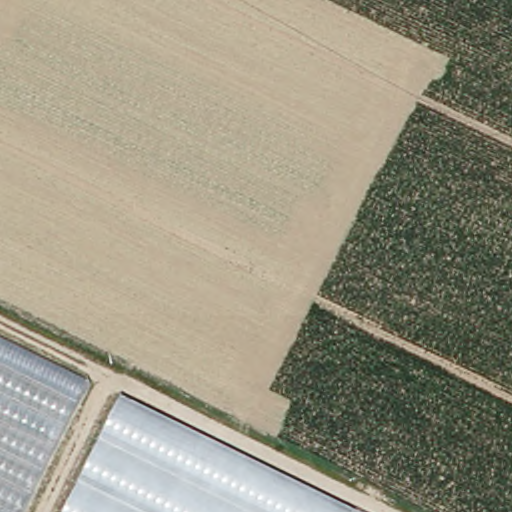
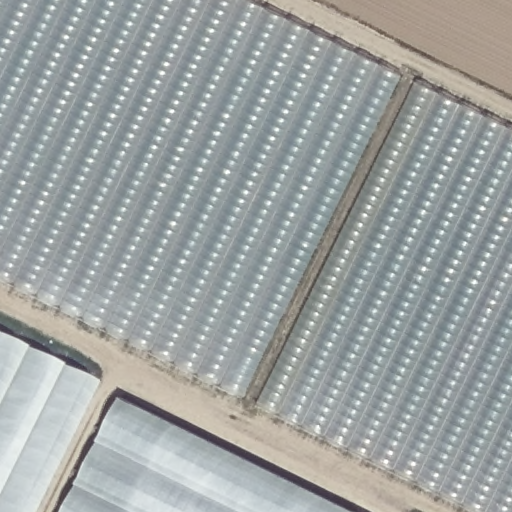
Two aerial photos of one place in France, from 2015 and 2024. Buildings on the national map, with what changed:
demolished [(0,97),(0,0),(259,0),(383,61),(276,231),(0,97)]
new [(248,401),(0,281),(0,0),(247,0),(405,78),(248,401)]
demolished [(307,247),(407,71),(512,124),(512,350),(307,247)]
new [(512,130),(512,512),(475,512),(258,407),(417,82),(512,130)]
unchanged [(24,512),(0,512),(0,332),(92,377),(24,512)]
unchanged [(364,512),(63,512),(121,393),(364,512)]

